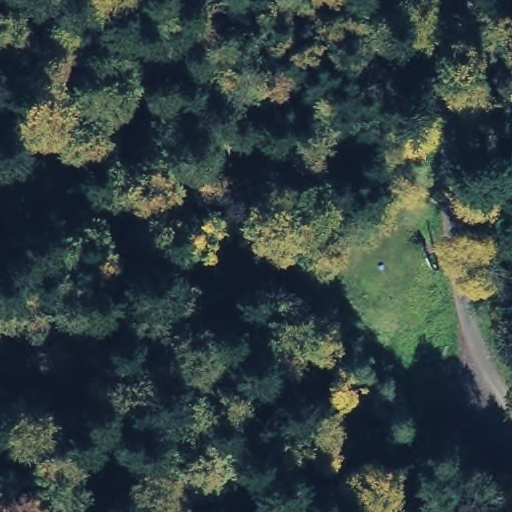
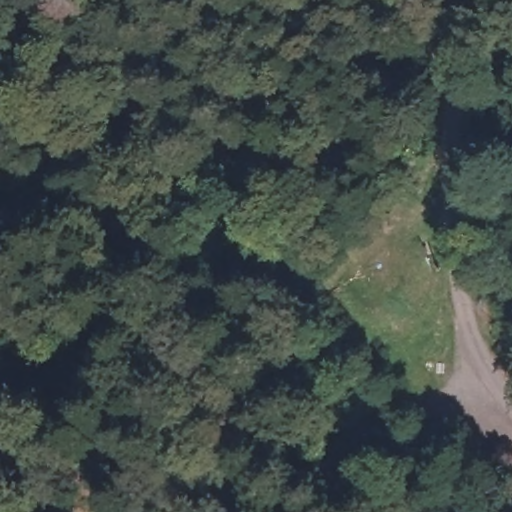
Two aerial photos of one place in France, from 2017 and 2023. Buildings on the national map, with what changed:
[]

